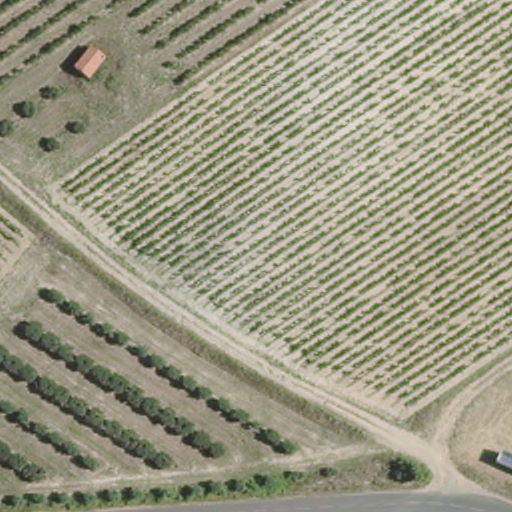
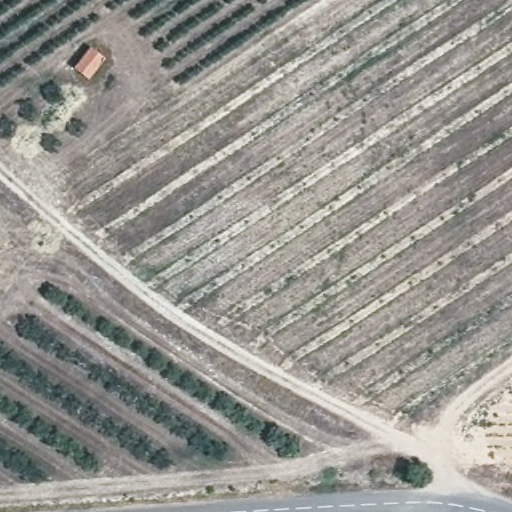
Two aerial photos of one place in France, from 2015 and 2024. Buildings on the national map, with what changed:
unchanged [(107,63),(90,80),(74,68),(90,48),(107,63)]

